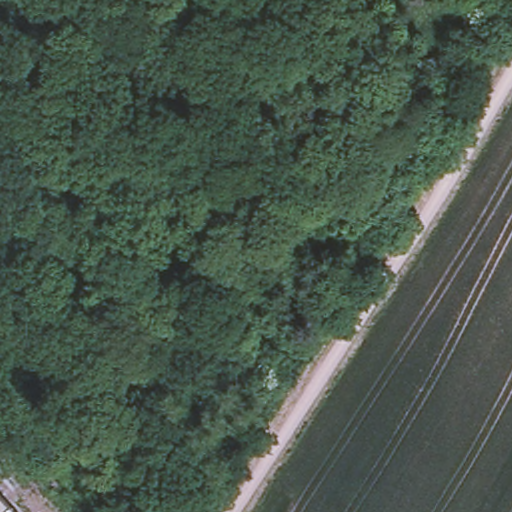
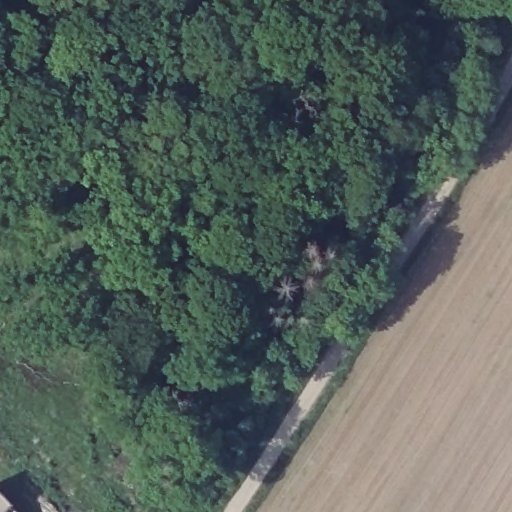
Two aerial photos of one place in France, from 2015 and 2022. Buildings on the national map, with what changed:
unchanged [(14,512),(0,512),(0,497),(8,506),(14,512)]

